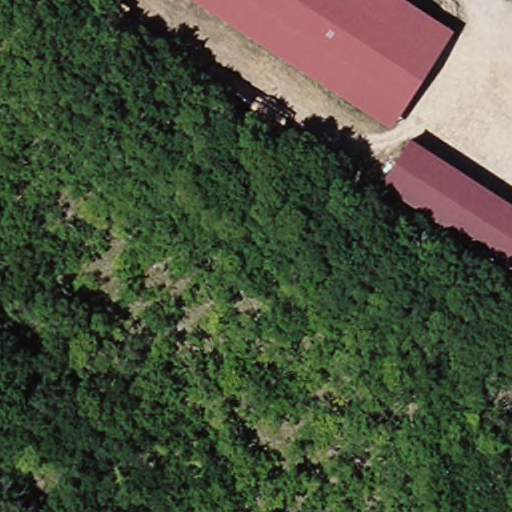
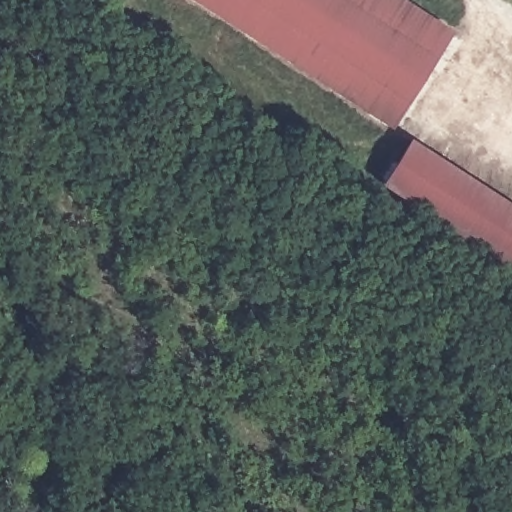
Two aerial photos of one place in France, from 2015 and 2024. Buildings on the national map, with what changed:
unchanged [(452,33),(390,128),(193,0),(401,0),(452,33)]
unchanged [(512,204),(512,268),(387,186),(416,142),(512,204)]

